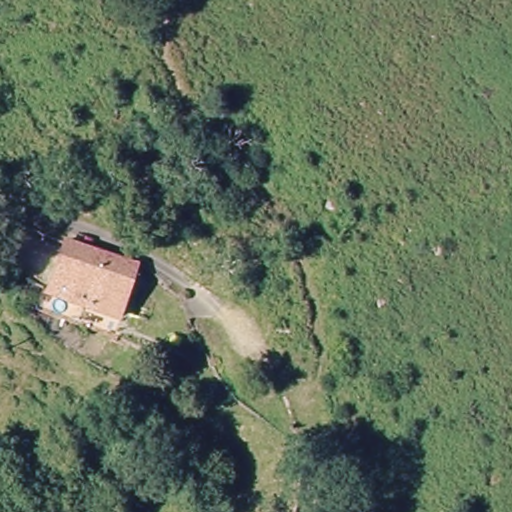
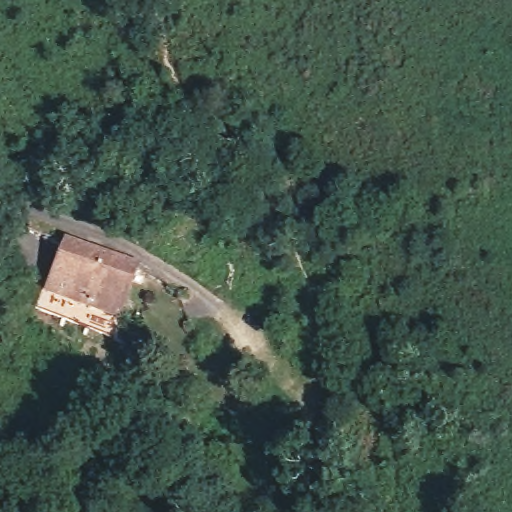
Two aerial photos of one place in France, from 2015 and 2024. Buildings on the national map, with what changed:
unchanged [(60,244),(129,258),(122,313),(48,297),(52,277),(60,244)]

